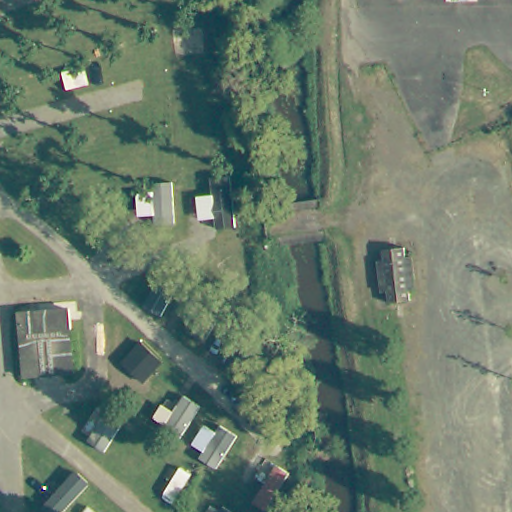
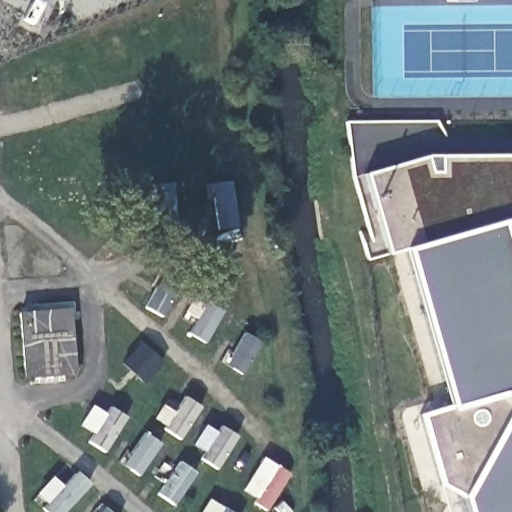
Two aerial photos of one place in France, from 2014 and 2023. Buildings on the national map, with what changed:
new [(425,155),(439,155),(512,155),(512,512),(468,512),(463,496),(438,483),(418,415),(452,406),(406,248),(387,253),(363,173),(425,155)]
demolished [(405,247),(406,258),(413,257),(417,288),(408,288),(410,301),(387,303),(386,291),(379,291),(376,261),(383,260),(382,250),(405,247)]
unchanged [(65,313),(71,376),(20,380),(15,317),(65,313)]

